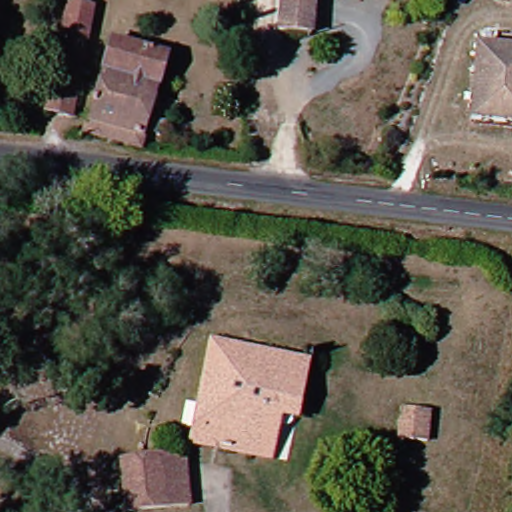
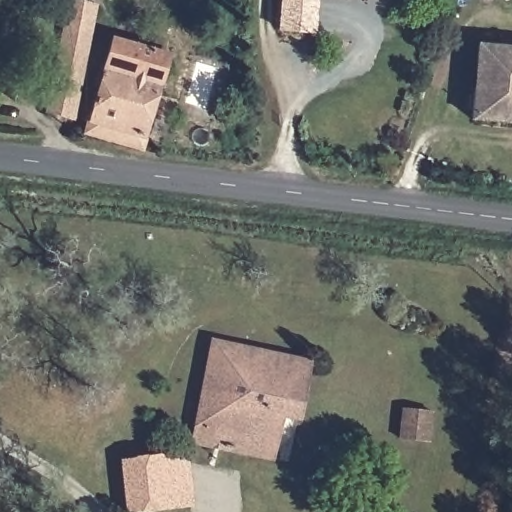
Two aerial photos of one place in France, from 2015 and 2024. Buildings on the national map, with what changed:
unchanged [(98,0),(92,30),(74,116),(49,113),(69,29),(77,0),(98,0)]
unchanged [(280,31),(283,0),(315,0),(311,34),(280,31)]
unchanged [(87,125),(92,106),(117,34),(175,55),(152,128),(147,139),(87,125)]
unchanged [(482,45),(512,48),(512,122),(478,120),(482,45)]
unchanged [(287,413),(271,412),(265,452),(192,442),(209,350),(295,359),(287,413)]
unchanged [(402,436),(403,407),(425,410),(423,439),(402,436)]
unchanged [(170,507),(130,506),(130,454),(157,449),(174,451),(190,461),(189,481),(191,504),(170,507)]

